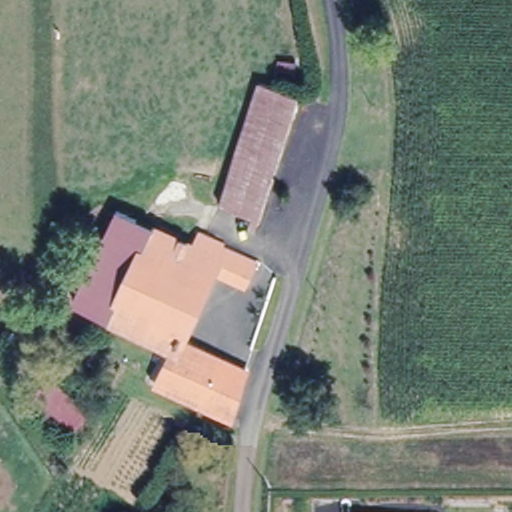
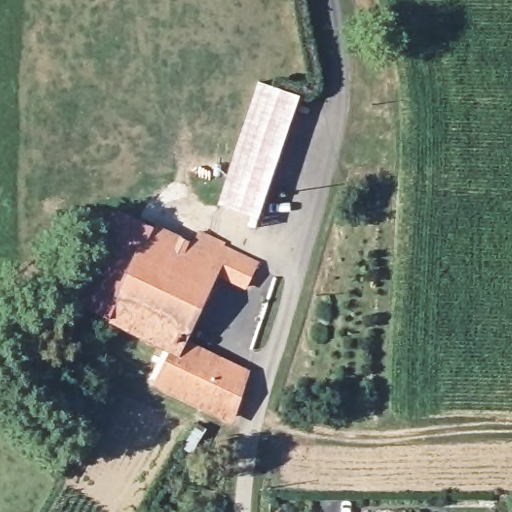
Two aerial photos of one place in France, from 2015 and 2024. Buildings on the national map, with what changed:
unchanged [(249,86),(290,93),(268,212),(228,203),(249,86)]
unchanged [(72,303),(113,208),(147,227),(109,319),(72,303)]
unchanged [(147,227),(183,243),(189,228),(223,245),(251,258),(243,282),(214,268),(181,347),(178,354),(168,347),(109,319),(147,227)]
unchanged [(154,382),(168,347),(178,354),(181,347),(244,376),(233,419),(154,382)]
unchanged [(67,429),(29,391),(52,368),(90,409),(67,429)]

